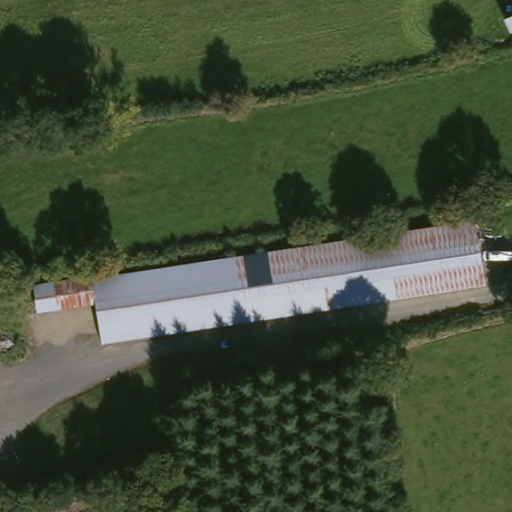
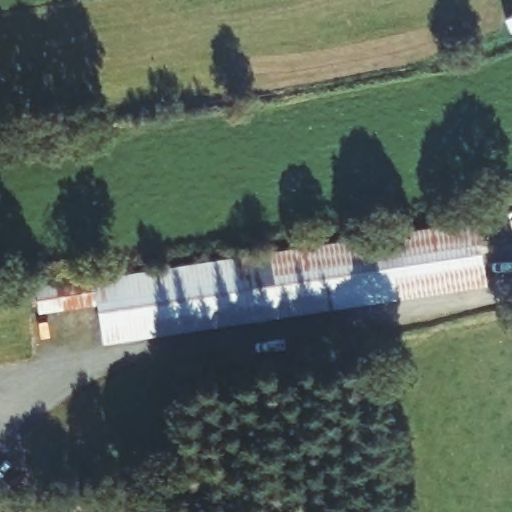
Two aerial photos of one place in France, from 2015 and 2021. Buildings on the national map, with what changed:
unchanged [(511,32),(506,20),(512,17),(512,32),(511,32)]
unchanged [(466,225),(465,215),(480,213),(491,284),(108,342),(102,304),(99,280),(466,225)]
unchanged [(99,280),(102,304),(45,312),(44,310),(33,312),(29,287),(99,277),(99,280)]

